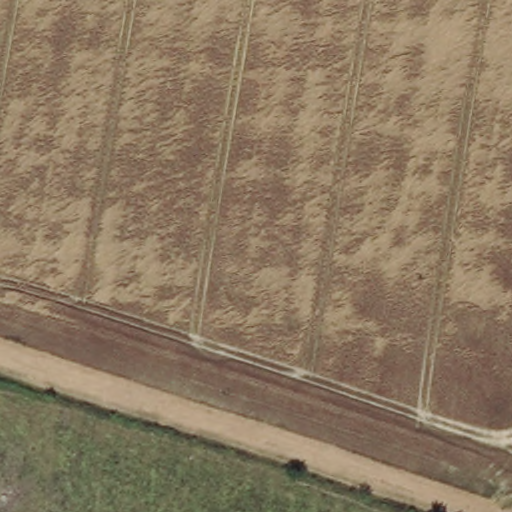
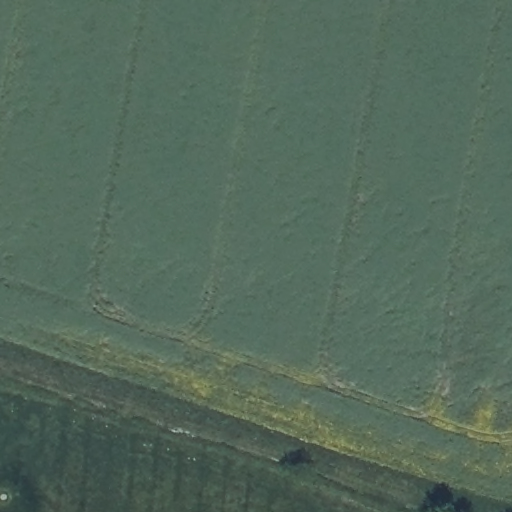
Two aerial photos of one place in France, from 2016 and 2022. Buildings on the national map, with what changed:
[]

